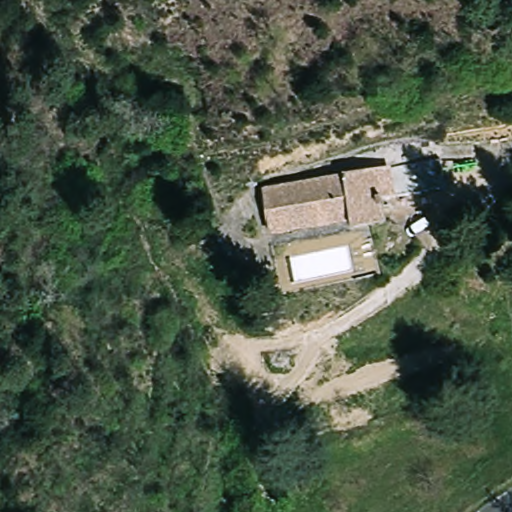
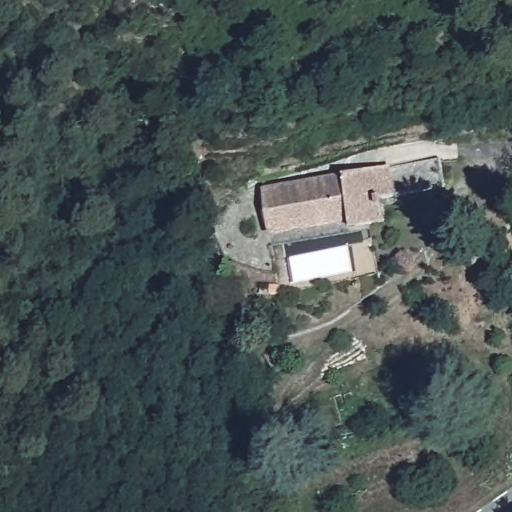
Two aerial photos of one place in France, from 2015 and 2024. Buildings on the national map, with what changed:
unchanged [(276,228),(269,190),(383,169),(393,167),(396,185),(386,187),(392,222),(357,227),(356,221),(294,231),(276,235),(276,228)]

